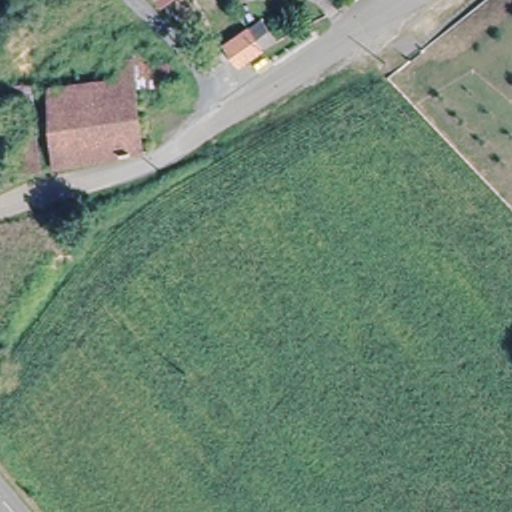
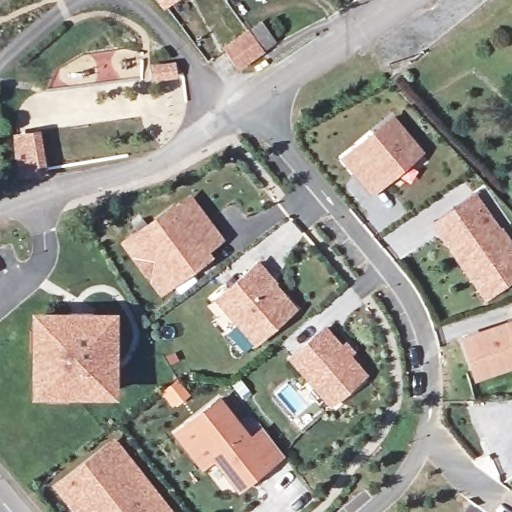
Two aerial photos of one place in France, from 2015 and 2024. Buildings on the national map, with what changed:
demolished [(442,27),(425,39),(408,14),(426,2),(442,27)]
unchanged [(261,13),(277,37),(265,44),(244,62),(224,36),(245,19),(247,22),(261,13)]
demolished [(45,86),(110,70),(132,65),(149,141),(59,156),(45,86)]
new [(391,116),(417,149),(369,189),(342,156),(391,116)]
unchanged [(42,172),(22,176),(17,142),(35,139),(42,172)]
new [(477,192),(485,203),(452,225),(463,242),(468,239),(487,267),(475,277),(437,219),(477,192)]
new [(175,201),(211,250),(172,278),(137,230),(175,201)]
new [(485,203),(512,244),(512,278),(487,295),(475,277),(487,267),(468,239),(463,242),(452,225),(485,203)]
new [(257,260),(295,305),(256,337),(217,292),(257,260)]
new [(66,311),(89,311),(109,311),(107,387),(32,385),(33,310),(66,311)]
new [(477,374),(466,335),(512,321),(512,364),(477,374)]
new [(343,350),(348,346),(355,353),(350,357),(362,371),(328,399),(294,358),(327,330),(343,350)]
new [(188,443),(175,426),(217,393),(247,434),(261,423),(280,448),(234,483),(211,452),(201,460),(188,443)]
new [(167,511),(166,512),(134,512),(125,500),(108,512),(79,512),(56,481),(112,437),(167,511)]
new [(134,512),(108,512),(125,500),(134,512)]

